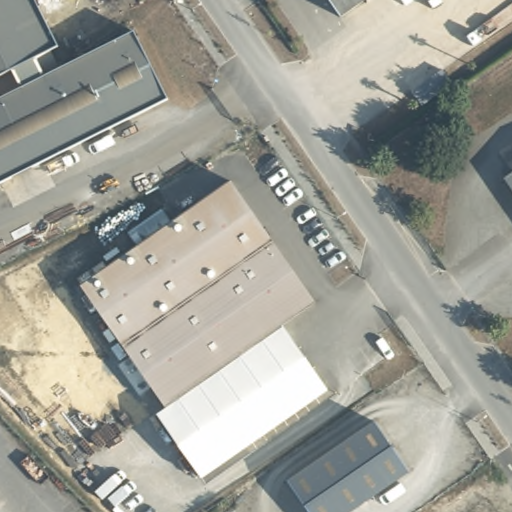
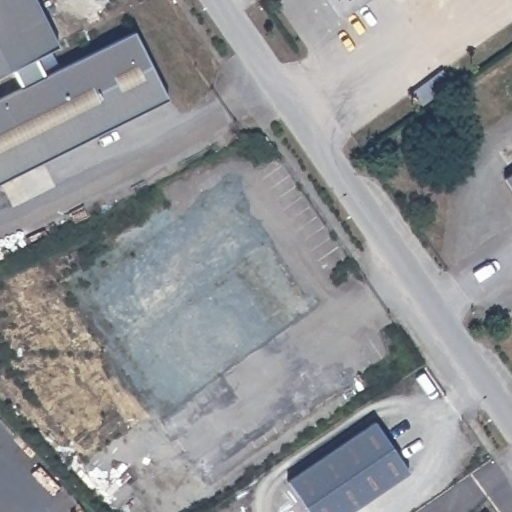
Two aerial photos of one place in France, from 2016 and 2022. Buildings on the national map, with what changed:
unchanged [(0,175),(0,92),(20,82),(10,64),(0,70),(0,0),(37,0),(57,40),(34,52),(44,70),(134,24),(167,91),(0,175)]
unchanged [(331,0),(369,0),(343,17),(331,0)]
unchanged [(441,72),(450,86),(434,97),(425,83),(441,72)]
unchanged [(512,170),(512,195),(500,178),(512,170)]
demolished [(227,177),(313,300),(169,400),(85,278),(227,177)]
unchanged [(372,423),(406,473),(350,512),(304,512),(284,483),(372,423)]

